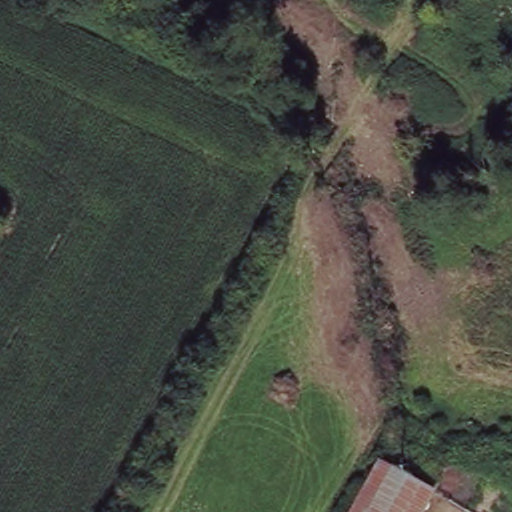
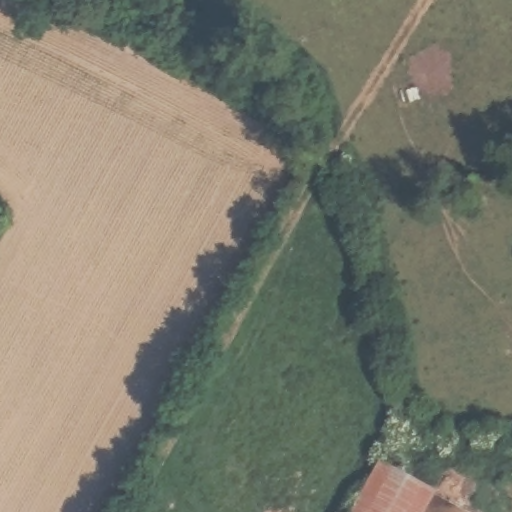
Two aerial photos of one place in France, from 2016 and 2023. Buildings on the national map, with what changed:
unchanged [(348,512),(376,459),(435,491),(425,512),(348,512)]

